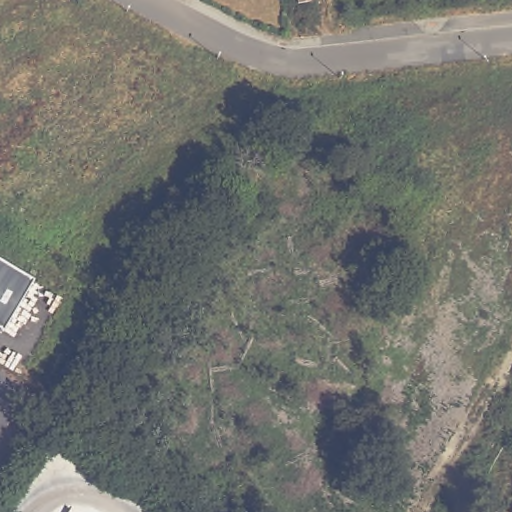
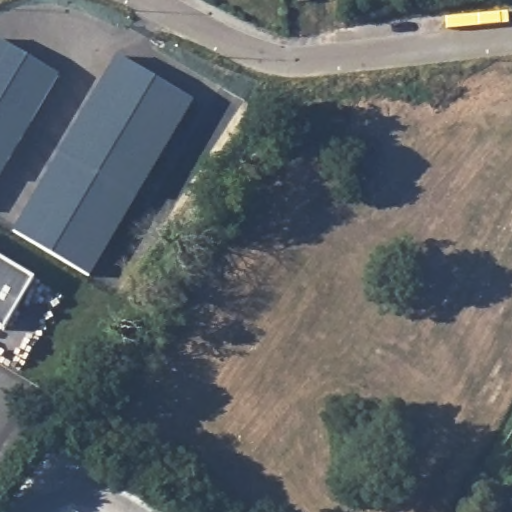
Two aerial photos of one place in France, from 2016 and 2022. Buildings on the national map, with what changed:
new [(0,175),(0,42),(59,77),(0,175)]
new [(118,57),(194,102),(89,278),(13,233),(118,57)]
unchanged [(4,334),(0,332),(0,261),(36,282),(4,334)]

